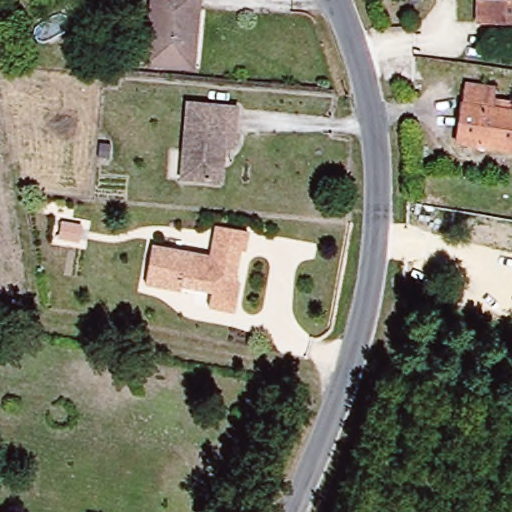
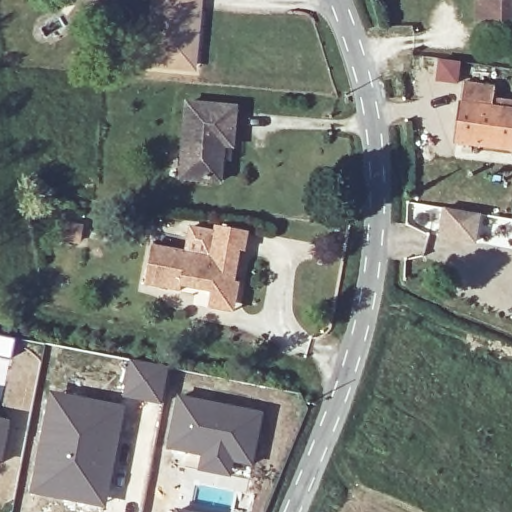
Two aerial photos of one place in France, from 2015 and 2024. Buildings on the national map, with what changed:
unchanged [(182,66),(145,62),(152,0),(198,0),(192,42),(189,67),(182,66)]
unchanged [(473,0),(507,0),(512,0),(512,20),(470,20),(473,0)]
unchanged [(448,147),(454,86),(485,91),(483,114),(508,117),(512,118),(512,155),(506,154),(448,147)]
unchanged [(181,103),(235,107),(232,150),(223,151),(220,185),(176,179),(181,103)]
new [(442,211),(477,217),(472,245),(438,239),(442,211)]
unchanged [(57,222),(80,223),(80,240),(56,239),(57,222)]
unchanged [(148,243),(207,254),(212,224),(250,231),(245,255),(240,254),(235,284),(239,285),(234,315),(201,308),(205,288),(179,284),(177,293),(140,282),(148,243)]
new [(14,336),(10,358),(0,356),(0,334),(14,336)]
new [(10,358),(3,387),(0,387),(0,356),(10,358)]
new [(129,358),(170,367),(162,405),(121,396),(129,358)]
new [(49,390),(126,406),(105,508),(29,493),(49,390)]
new [(177,395),(265,411),(253,466),(234,462),(230,477),(197,470),(200,456),(166,449),(177,395)]
new [(11,419),(3,465),(0,465),(0,417),(11,419)]
new [(195,512),(174,512),(175,507),(195,512)]

